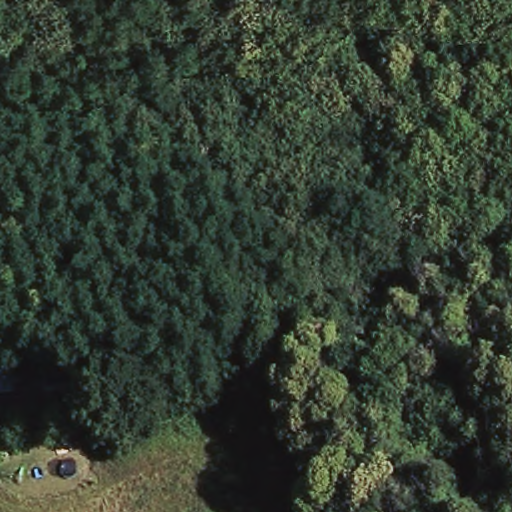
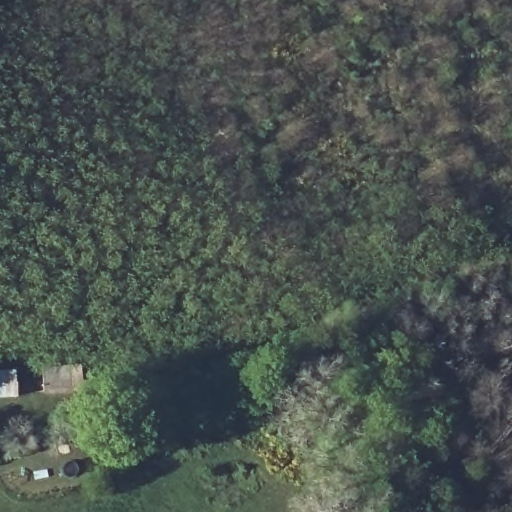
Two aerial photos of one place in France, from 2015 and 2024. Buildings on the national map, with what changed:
unchanged [(68,363),(69,389),(45,390),(43,364),(68,363)]

